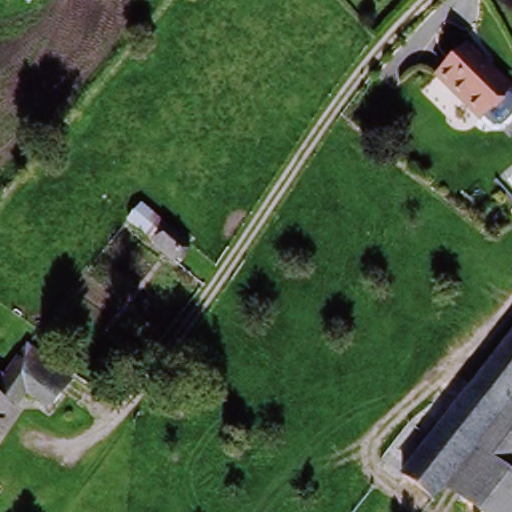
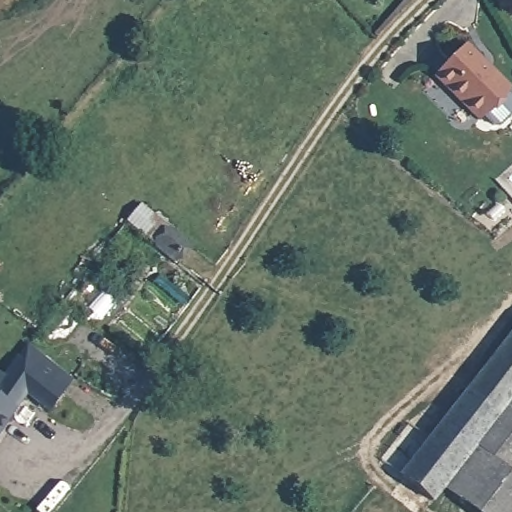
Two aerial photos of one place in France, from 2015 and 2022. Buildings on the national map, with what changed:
unchanged [(512,89),(512,93),(486,117),(446,75),(475,49),(512,89)]
unchanged [(168,259),(139,236),(123,224),(142,199),(188,233),(181,242),(168,259)]
unchanged [(435,488),(425,501),(389,474),(512,313),(512,388),(468,445),(435,488)]
unchanged [(12,369),(55,399),(40,418),(22,404),(0,434),(0,385),(12,369)]
unchanged [(512,388),(512,479),(468,445),(512,388)]
unchanged [(466,512),(447,497),(435,488),(468,445),(512,479),(512,505),(507,512),(466,512)]

